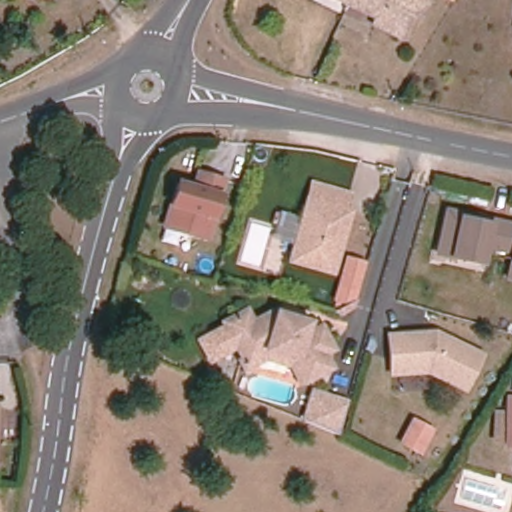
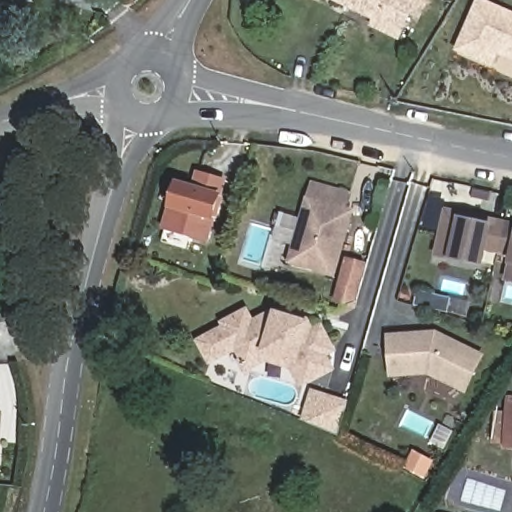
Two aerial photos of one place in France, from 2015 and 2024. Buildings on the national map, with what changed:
unchanged [(420,14),(410,9),(398,33),(373,20),(377,12),(352,0),(427,0),(420,14)]
new [(477,0),(488,0),(512,11),(512,61),(498,55),(494,67),(455,50),(477,0)]
unchanged [(224,180),(208,238),(167,226),(179,183),(196,187),(200,173),(224,180)]
unchanged [(308,189),(348,200),(352,201),(334,265),(290,252),(308,189)]
unchanged [(444,205),(512,220),(512,282),(504,280),(507,264),(509,254),(486,250),(483,266),(447,258),(433,255),(444,205)]
unchanged [(355,299),(342,304),(333,300),(345,256),(367,262),(355,299)]
unchanged [(255,317),(275,309),(313,320),(323,322),(339,352),(333,356),(337,370),(302,385),(293,371),(263,364),(247,373),(235,354),(211,365),(198,339),(222,327),(221,321),(250,308),(255,317)]
unchanged [(427,374),(390,377),(385,332),(435,329),(484,354),(466,393),(427,374)]
unchanged [(317,427),(306,422),(314,394),(325,398),(348,404),(339,436),(317,427)]
unchanged [(498,425),(509,425),(510,410),(512,410),(512,457),(507,456),(508,451),(496,451),(498,425)]
demolished [(414,421),(433,431),(421,455),(401,444),(414,421)]

